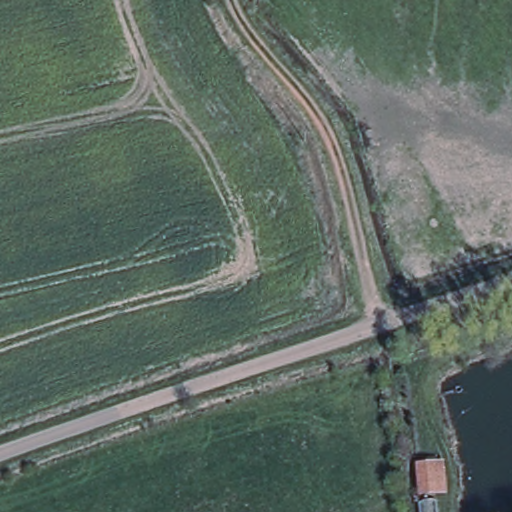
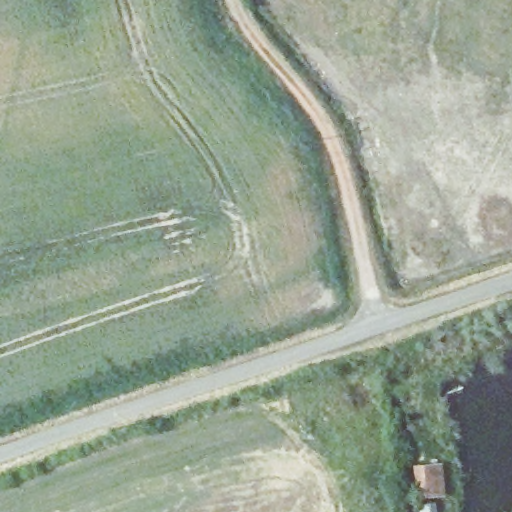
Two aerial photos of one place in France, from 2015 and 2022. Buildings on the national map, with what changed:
unchanged [(445,461),(446,477),(447,496),(418,497),(417,464),(445,461)]

